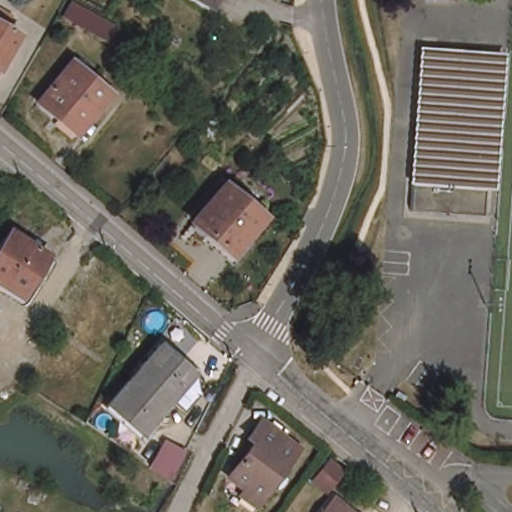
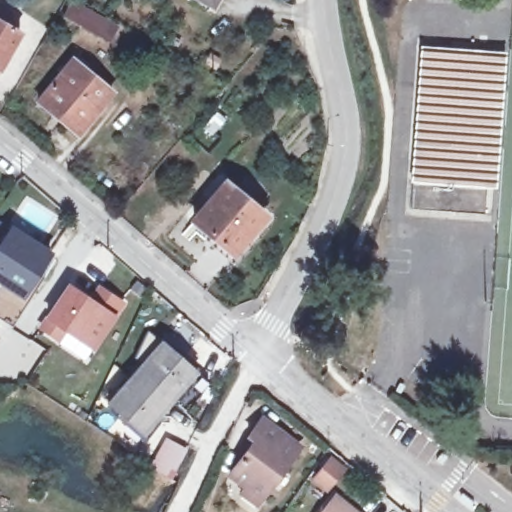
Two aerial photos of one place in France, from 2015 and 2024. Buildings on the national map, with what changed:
unchanged [(214,6),(203,0),(217,0),(214,6)]
unchanged [(111,42),(65,16),(73,1),(120,27),(111,42)]
unchanged [(0,69),(0,23),(20,35),(0,70),(0,69)]
unchanged [(498,52),(495,89),(485,215),(412,209),(425,47),(489,52),(498,52)]
unchanged [(74,60),(114,93),(83,131),(62,113),(59,118),(40,102),(74,60)]
unchanged [(235,263),(210,242),(215,238),(195,221),(227,184),(266,217),(249,237),(254,242),(235,263)]
unchanged [(0,281),(0,248),(12,228),(52,254),(25,297),(0,281)]
new [(6,324),(0,320),(0,281),(25,297),(6,324)]
new [(66,334),(62,343),(38,329),(44,319),(67,283),(89,298),(97,285),(127,303),(119,318),(115,316),(94,352),(66,334)]
unchanged [(163,343),(210,384),(187,410),(175,400),(145,435),(110,404),(163,343)]
unchanged [(244,490),(251,480),(237,470),(260,438),(255,433),(268,415),(306,443),(269,493),(262,503),(244,490)]
unchanged [(173,478),(155,468),(170,441),(187,450),(173,478)]
unchanged [(354,512),(323,512),(335,497),(354,512)]

